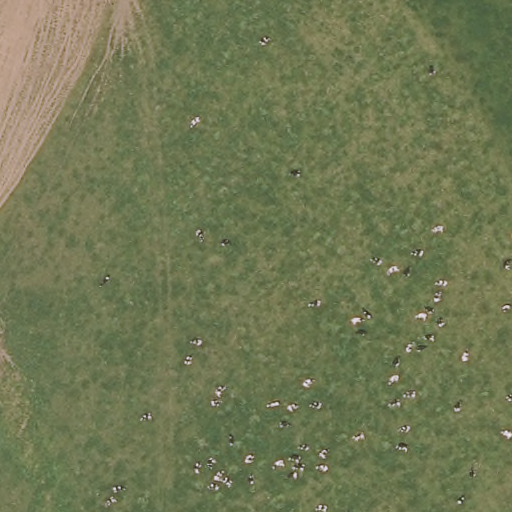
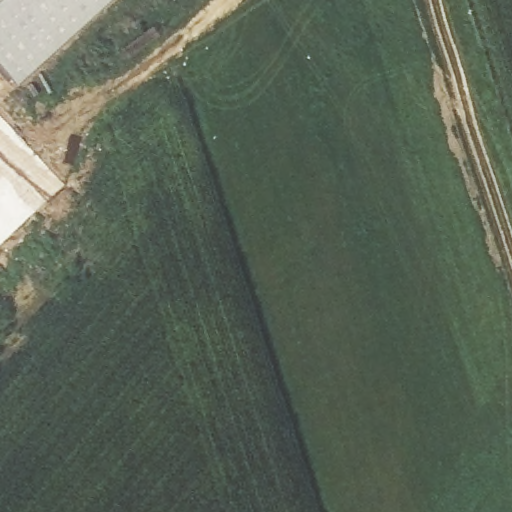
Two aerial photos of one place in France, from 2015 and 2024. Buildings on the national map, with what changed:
new [(0,70),(0,0),(115,0),(17,89),(0,70)]

